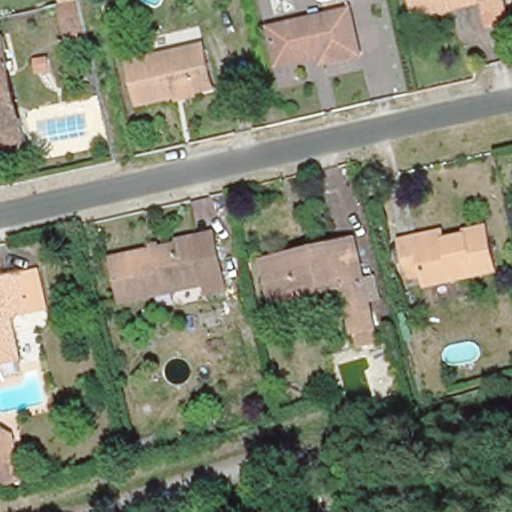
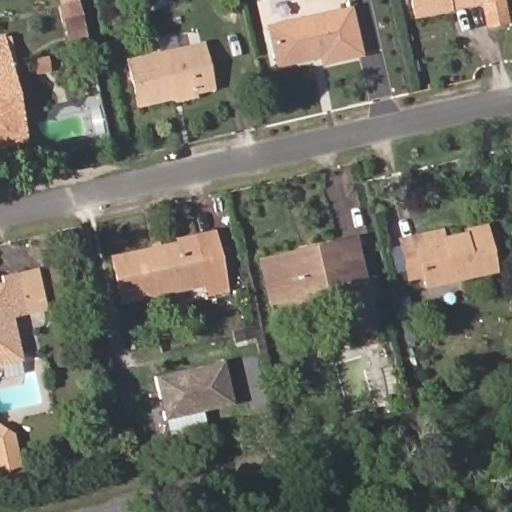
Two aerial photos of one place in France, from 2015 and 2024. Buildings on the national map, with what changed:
unchanged [(55,0),(77,0),(88,45),(66,51),(55,0)]
unchanged [(485,14),(482,2),(414,20),(409,0),(507,0),(510,6),(485,14)]
unchanged [(360,51),(325,61),(323,55),(282,65),(272,25),(350,6),(360,51)]
unchanged [(0,138),(0,38),(4,38),(11,68),(21,115),(26,133),(0,138)]
unchanged [(201,43),(210,84),(136,103),(128,61),(201,43)]
unchanged [(494,263),(428,277),(425,267),(408,271),(400,234),(416,230),(439,225),(441,235),(485,225),(494,263)]
unchanged [(121,293),(111,252),(195,231),(198,242),(219,236),(229,279),(209,284),(206,272),(121,293)]
unchanged [(356,234),(359,244),(376,321),(353,326),(345,281),(281,295),(269,297),(259,255),(272,252),(335,239),(356,234)]
unchanged [(4,270),(20,265),(29,306),(8,312),(16,350),(0,354),(0,281),(6,279),(4,270)]
new [(224,362),(233,407),(166,422),(156,378),(224,362)]
unchanged [(0,485),(0,427),(14,439),(22,482),(8,488),(0,485)]

